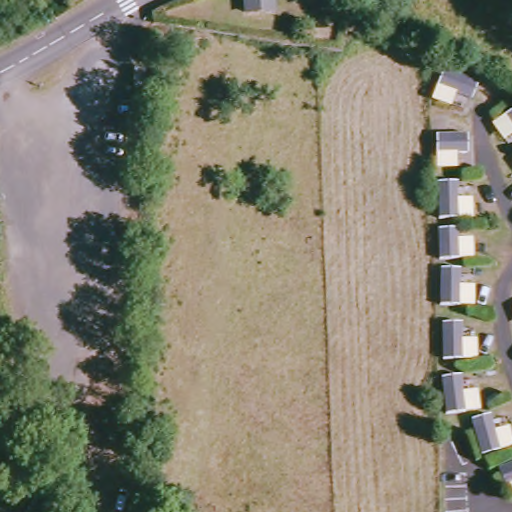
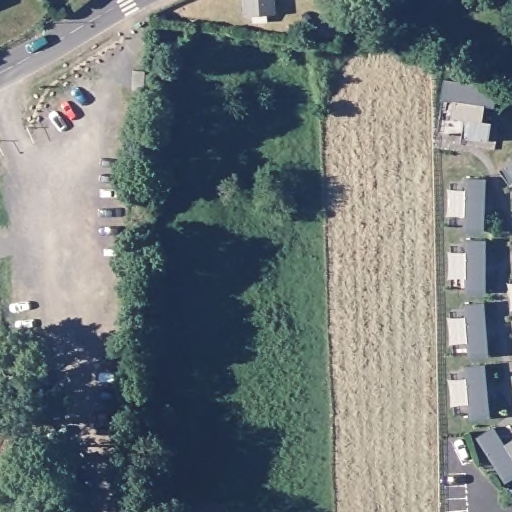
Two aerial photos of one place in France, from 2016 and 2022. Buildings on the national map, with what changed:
unchanged [(250,12),(250,0),(277,0),(277,11),(250,12)]
unchanged [(445,69),(490,83),(475,110),(435,95),(445,69)]
unchanged [(512,117),(512,129),(506,119),(512,117)]
unchanged [(433,136),(471,138),(472,169),(438,166),(433,136)]
unchanged [(441,187),(470,188),(469,226),(437,223),(441,187)]
unchanged [(442,231),(470,232),(468,267),(437,264),(442,231)]
unchanged [(443,277),(474,276),(475,311),(443,312),(443,277)]
unchanged [(442,326),(472,326),(475,367),(443,364),(442,326)]
unchanged [(442,383),(475,383),(480,417),(451,421),(442,383)]
unchanged [(471,427),(499,415),(511,457),(486,464),(471,427)]

